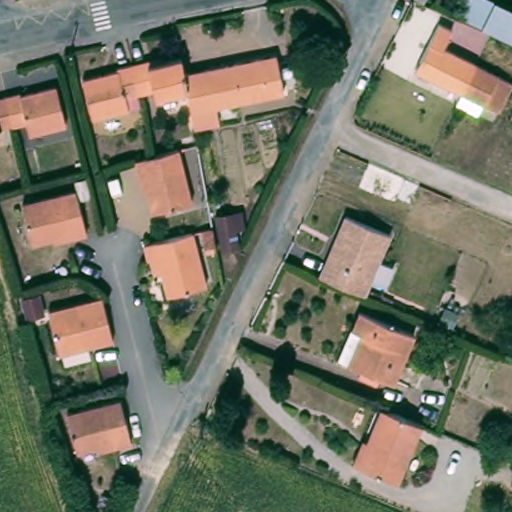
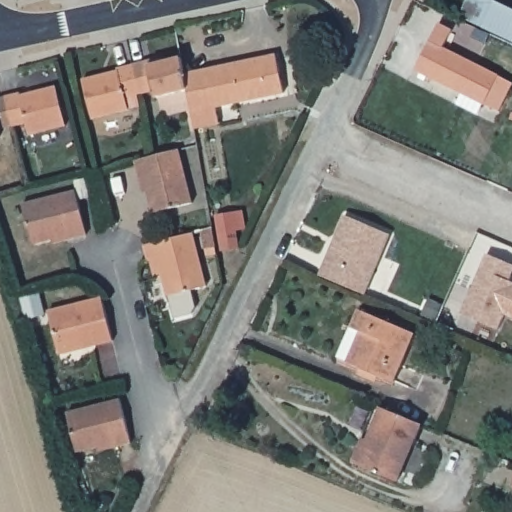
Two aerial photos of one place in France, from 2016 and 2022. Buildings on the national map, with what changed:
unchanged [(418,0),(429,0),(426,6),(417,1),(418,0)]
unchanged [(465,0),(487,0),(512,12),(512,40),(457,15),(465,0)]
unchanged [(458,93),(412,71),(437,24),(450,31),(441,49),(475,64),(458,93)]
unchanged [(182,75),(274,56),(282,93),(214,107),(217,124),(192,129),(185,90),(182,75)]
unchanged [(129,66),(144,62),(145,65),(179,57),(182,75),(185,90),(154,98),(152,92),(135,96),(129,66)]
unchanged [(512,83),(497,111),(482,103),(477,114),(453,104),(458,93),(475,64),(512,83)]
unchanged [(123,98),(126,111),(89,119),(81,80),(117,72),(117,68),(129,66),(135,96),(123,98)]
unchanged [(2,98),(17,95),(18,97),(54,89),(63,127),(27,136),(24,124),(10,127),(2,98)]
unchanged [(0,130),(0,99),(2,98),(10,127),(0,130)]
unchanged [(142,177),(137,178),(134,161),(148,157),(172,152),(177,150),(190,204),(151,214),(142,177)]
demolished [(372,169),(408,185),(397,209),(362,194),(372,169)]
unchanged [(63,241),(62,237),(26,246),(16,207),(69,193),(80,237),(63,241)]
unchanged [(393,231),(370,293),(322,272),(347,214),(393,231)]
unchanged [(234,234),(225,236),(227,254),(209,257),(203,222),(231,218),(234,234)]
unchanged [(190,237),(200,234),(204,253),(193,255),(190,237)]
unchanged [(181,239),(195,291),(156,301),(147,264),(137,267),(133,251),(181,239)]
new [(487,254),(512,265),(512,274),(509,281),(512,282),(512,318),(505,315),(497,330),(461,313),(477,278),(480,270),(487,254)]
unchanged [(111,342),(92,347),(92,343),(57,352),(47,312),(100,298),(111,342)]
unchanged [(408,335),(387,382),(342,363),(330,358),(345,328),(352,311),(408,335)]
unchanged [(130,444),(113,448),(112,445),(76,453),(65,414),(119,400),(130,444)]
unchanged [(360,441),(366,443),(380,410),(419,426),(396,483),(360,468),(350,465),(360,441)]
unchanged [(512,481),(512,488),(510,487),(512,481)]

